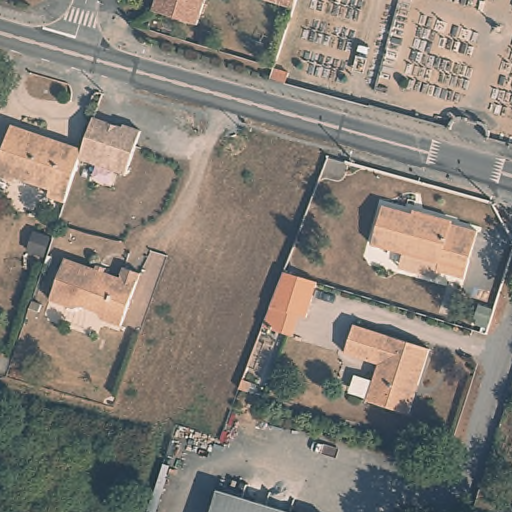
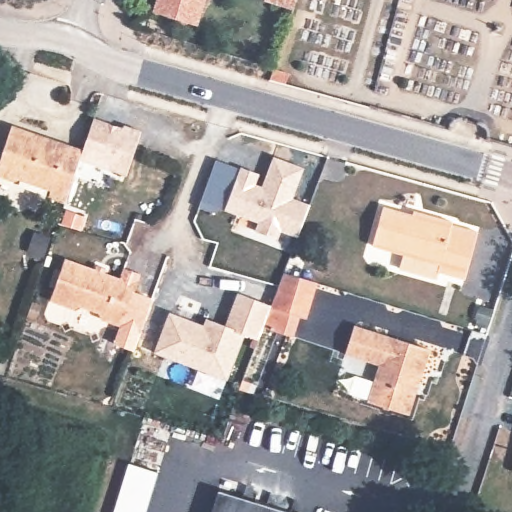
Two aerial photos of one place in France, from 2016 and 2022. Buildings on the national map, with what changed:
unchanged [(157,6),(159,0),(208,0),(202,17),(157,6)]
unchanged [(264,0),(296,0),(292,10),(264,2),(264,0)]
unchanged [(142,123),(126,175),(77,162),(81,150),(94,114),(142,123)]
unchanged [(47,186),(17,175),(15,181),(0,176),(0,164),(12,126),(81,150),(77,162),(64,200),(44,194),(47,186)]
new [(240,167),(260,173),(257,183),(261,185),(273,156),(303,167),(292,197),(310,204),(300,237),(280,232),(278,239),(254,230),(256,222),(224,211),(240,167)]
unchanged [(393,267),(397,252),(371,242),(385,205),(417,215),(419,210),(450,220),(448,227),(481,238),(466,282),(431,270),(427,278),(393,267)]
unchanged [(104,321),(105,312),(80,304),(72,310),(49,302),(65,260),(137,280),(122,327),(104,321)]
new [(204,324),(205,317),(225,324),(236,292),(270,304),(273,292),(281,273),(318,286),(305,322),(292,317),(286,337),(261,329),(258,339),(246,335),(230,381),(154,353),(169,311),(204,324)]
demolished [(268,310),(273,292),(281,273),(318,286),(305,322),(292,317),(268,310)]
new [(154,298),(136,352),(112,343),(119,326),(122,327),(133,292),(154,298)]
unchanged [(363,400),(373,368),(341,356),(353,325),(432,355),(411,417),(363,400)]
new [(127,462),(156,471),(144,512),(113,512),(127,462)]
unchanged [(224,483),(304,512),(214,512),(224,483)]

